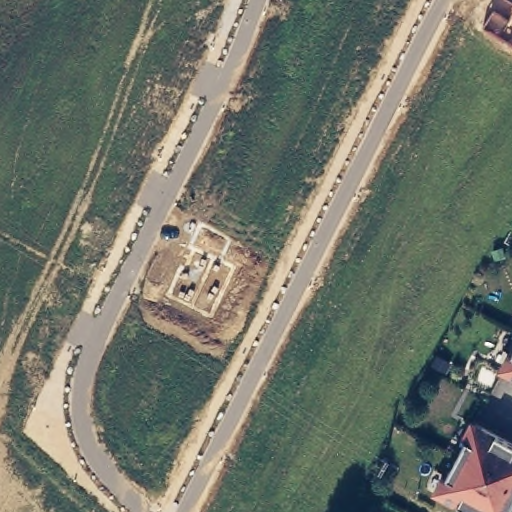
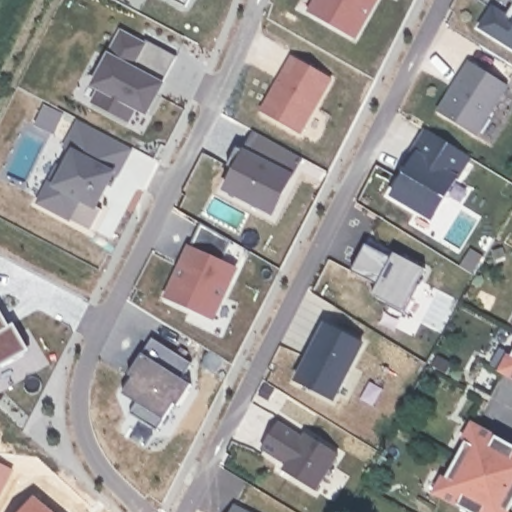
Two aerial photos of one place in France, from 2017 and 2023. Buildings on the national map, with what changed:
new [(181,0),(193,0),(191,5),(181,0)]
new [(375,0),(355,36),(312,11),(318,0),(375,0)]
unchanged [(510,0),(512,0),(512,1),(510,0)]
unchanged [(482,29),(493,11),(508,21),(512,14),(512,47),(482,29)]
new [(147,112),(136,106),(129,120),(93,101),(107,76),(100,73),(122,31),(145,43),(147,39),(177,55),(162,83),(157,92),(147,112)]
new [(275,86),(273,85),(290,55),(332,78),(300,132),(262,110),(275,86)]
new [(455,88),(453,86),(469,61),(507,85),(476,135),(440,112),(455,88)]
new [(59,163),(65,166),(74,150),(65,146),(80,118),(132,146),(117,174),(113,172),(96,205),(102,208),(92,229),(38,201),(50,180),(59,163)]
new [(417,153),(413,151),(427,129),(471,156),(432,217),(392,193),(417,153)]
new [(262,207),(225,188),(235,169),(223,163),(233,144),(245,150),(255,130),(301,156),(283,192),(272,212),(262,207)]
new [(201,221),(232,239),(222,261),(235,267),(212,317),(167,296),(201,221)]
new [(368,239),(407,259),(425,268),(417,283),(418,284),(403,314),(386,305),(387,302),(371,294),(377,284),(352,270),(365,244),(368,239)]
new [(0,365),(0,307),(25,352),(0,365)]
new [(325,323),(362,342),(333,398),(296,379),(325,323)]
new [(146,355),(142,352),(152,336),(192,361),(182,377),(191,383),(177,404),(174,402),(157,429),(130,411),(137,401),(122,392),(146,355)]
unchanged [(512,347),(512,376),(500,369),(512,347)]
new [(277,421),(302,437),(305,432),(337,452),(315,488),(283,468),(287,462),(262,446),(277,421)]
unchanged [(477,427),(512,446),(512,511),(512,512),(469,512),(440,496),(477,427)]
new [(50,512),(19,512),(32,497),(50,512)]
new [(233,504),(250,512),(229,512),(233,504)]

